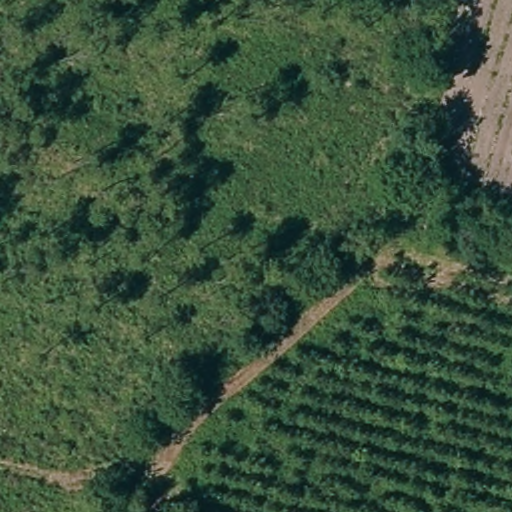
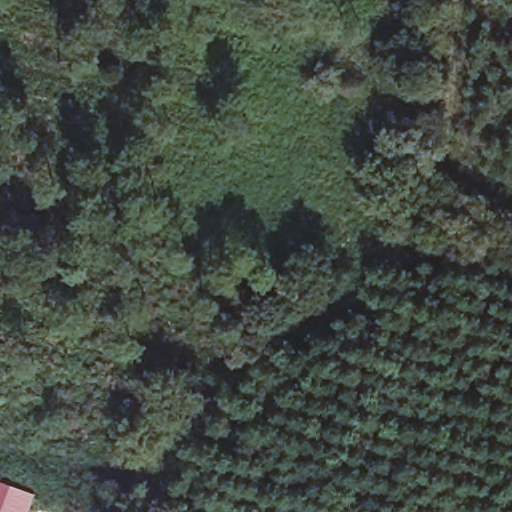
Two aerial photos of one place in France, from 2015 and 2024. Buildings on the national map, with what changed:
new [(29,512),(0,512),(0,478),(37,491),(29,512)]

